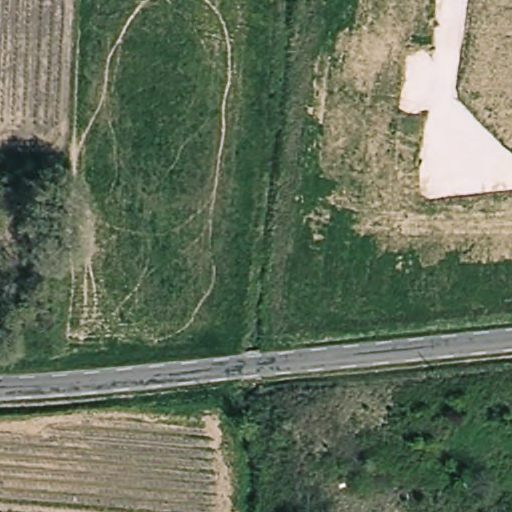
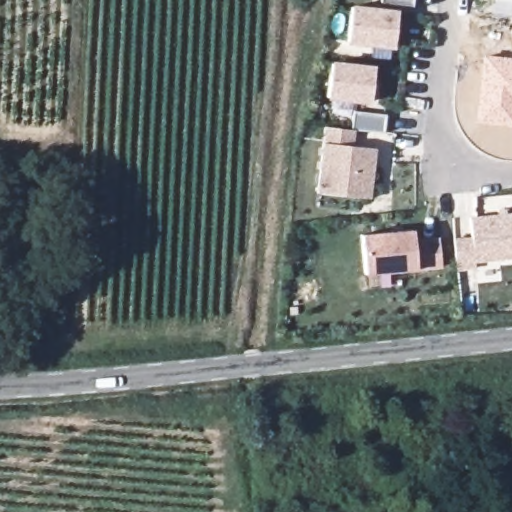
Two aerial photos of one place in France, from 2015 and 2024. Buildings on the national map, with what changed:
new [(381,4),(381,0),(414,0),(413,8),(381,4)]
new [(352,8),(398,13),(394,45),(394,47),(348,42),(348,40),(352,8)]
new [(512,20),(512,32),(511,32),(512,20)]
new [(482,55),(512,58),(512,126),(476,121),(482,55)]
new [(332,64),(374,69),(371,103),(328,98),(332,64)]
new [(352,131),(354,111),(387,116),(385,134),(355,131),(353,147),(376,149),(370,199),(319,194),(327,128),(352,131)]
new [(458,272),(455,239),(472,237),(471,218),(499,215),(499,210),(507,209),(507,215),(512,214),(512,259),(476,263),(477,269),(458,272)]
unchanged [(413,231),(414,242),(439,240),(441,267),(365,275),(361,236),(413,231)]

